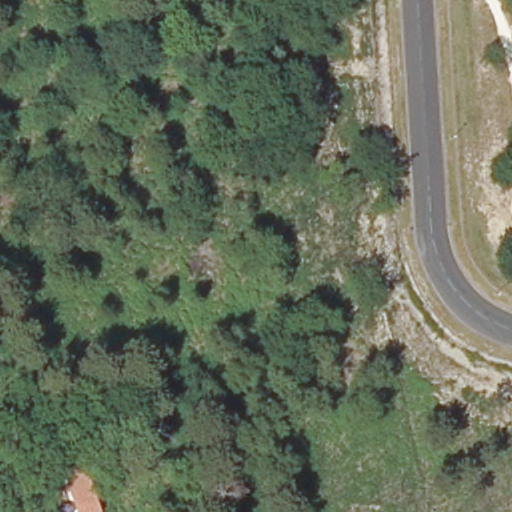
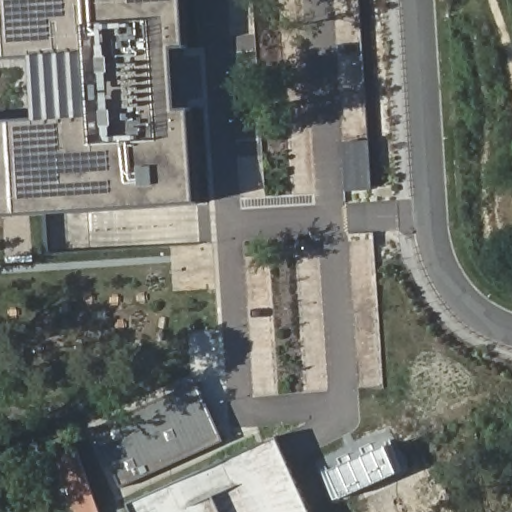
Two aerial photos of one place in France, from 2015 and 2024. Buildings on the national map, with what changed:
new [(198,204),(0,216),(0,123),(35,121),(31,57),(0,59),(0,0),(183,0),(186,47),(173,49),(177,111),(190,109),(198,204)]
new [(366,141),(368,189),(344,191),(342,142),(366,141)]
new [(121,487),(95,428),(197,382),(224,442),(121,487)]
new [(180,481),(225,461),(276,438),(310,512),(132,512),(128,505),(180,481)]
unchanged [(70,454),(87,502),(69,507),(53,462),(70,454)]

